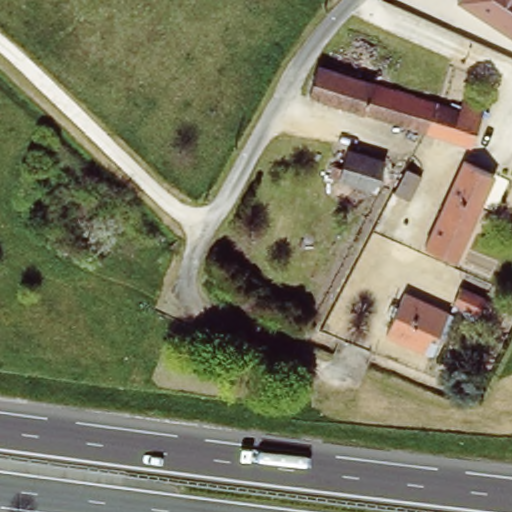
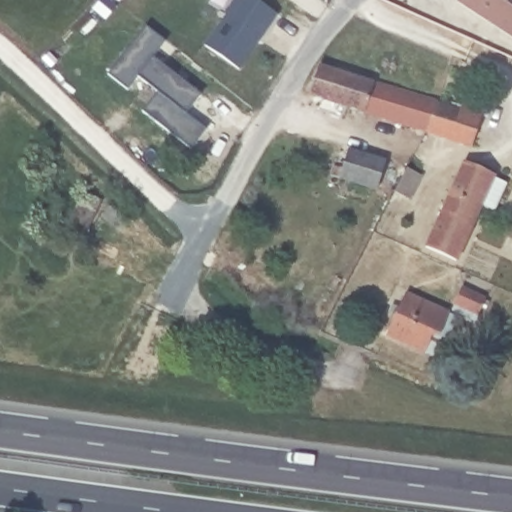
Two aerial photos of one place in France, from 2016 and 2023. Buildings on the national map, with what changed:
new [(238,69),(203,45),(225,14),(223,13),(233,0),(257,0),(276,14),(238,69)]
unchanged [(512,36),(457,0),(512,0),(512,36)]
new [(185,113),(205,130),(187,148),(144,109),(157,92),(138,76),(127,89),(107,74),(145,26),(165,41),(152,57),(200,95),(185,113)]
unchanged [(430,129),(415,125),(416,122),(411,121),(410,123),(314,92),(314,91),(318,79),(318,78),(323,62),(440,100),(440,102),(430,129)]
unchanged [(440,102),(461,109),(464,101),(497,112),(495,122),(484,119),(476,145),(430,129),(440,102)]
unchanged [(393,162),(390,171),(380,168),(373,186),(367,184),(366,184),(358,181),(342,176),(340,175),(332,173),(335,164),(342,166),(345,160),(345,159),(350,147),(393,162)]
unchanged [(456,258),(428,244),(473,151),(502,166),(456,258)]
new [(453,303),(460,288),(485,299),(478,314),(475,321),(451,310),(455,303),(453,303)]
unchanged [(439,306),(421,346),(390,331),(408,292),(439,306)]

